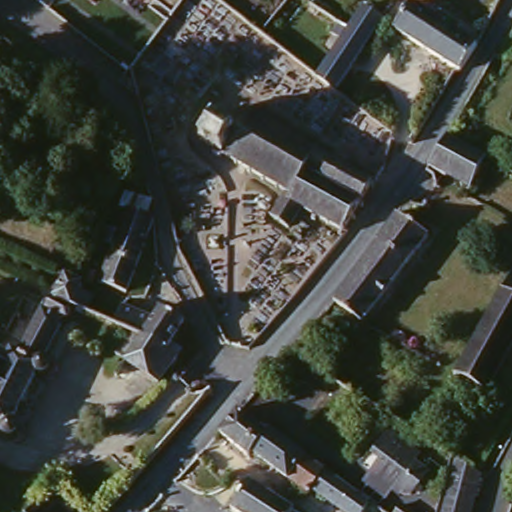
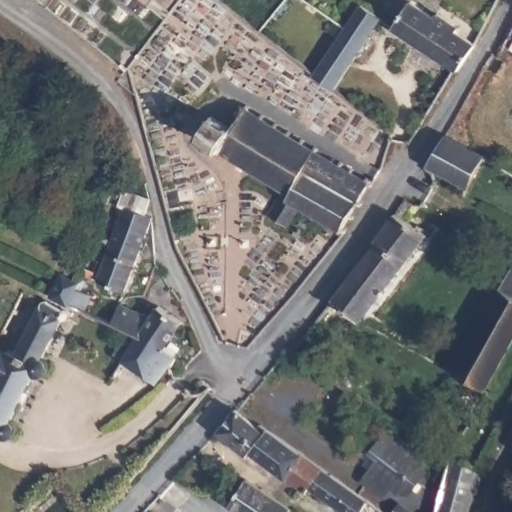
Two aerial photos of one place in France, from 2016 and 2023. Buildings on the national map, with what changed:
unchanged [(301,1),(299,0),(301,0),(301,1)]
unchanged [(337,38),(327,30),(334,20),(345,28),(360,6),(381,19),(333,87),(332,88),(314,74),(315,71),(337,38)]
unchanged [(392,32),(410,6),(434,21),(438,15),(461,29),(457,35),(477,47),(458,73),(392,32)]
unchanged [(341,229),(339,232),(336,230),(337,227),(315,214),(313,217),(310,215),(312,212),(297,203),(286,221),(267,210),(280,186),(221,151),(217,156),(209,150),(212,146),(198,138),(211,115),(228,126),(230,123),(233,124),(239,114),(236,112),(240,105),(244,107),(247,103),(250,105),(248,109),(258,115),(261,112),(265,113),(262,117),(272,123),(274,120),(277,121),(275,125),(285,130),(287,127),(291,130),(289,133),(297,138),(299,134),(302,136),(300,140),(307,144),(311,141),(313,143),(311,147),(322,153),(323,149),(327,151),(325,155),(331,158),(333,154),(336,156),(333,160),(337,162),(341,159),(343,161),(341,164),(348,168),(351,165),(354,168),(352,171),(364,178),(367,174),(372,179),(371,181),(373,183),(371,188),(367,186),(360,200),(362,202),(359,206),(357,204),(352,212),(355,214),(352,218),(350,216),(344,225),(347,227),(345,231),(341,229)]
unchanged [(483,164),(467,194),(428,174),(446,143),(483,164)]
unchanged [(123,289),(96,277),(125,206),(118,203),(125,188),(152,199),(152,202),(145,214),(152,217),(147,230),(123,289)]
unchanged [(426,231),(358,317),(332,298),(382,242),(378,239),(395,210),(426,231)]
unchanged [(97,274),(92,285),(79,279),(83,269),(97,274)]
unchanged [(65,277),(77,282),(82,285),(78,292),(94,300),(87,314),(85,313),(82,320),(65,312),(41,364),(44,364),(48,366),(49,370),(47,374),(43,377),(39,376),(37,374),(12,428),(15,431),(16,434),(15,439),(12,440),(7,439),(3,435),(4,431),(6,428),(0,425),(0,352),(11,357),(13,352),(20,355),(45,302),(51,305),(65,277)]
unchanged [(450,381),(506,278),(512,282),(512,343),(481,399),(450,381)]
unchanged [(115,327),(124,307),(154,321),(162,309),(185,325),(167,351),(132,336),(115,327)]
unchanged [(160,386),(117,357),(132,336),(167,351),(177,360),(160,386)]
unchanged [(348,512),(312,484),(309,488),(252,450),(247,457),(218,428),(237,405),(261,424),(262,421),(312,458),(369,499),(362,512),(348,512)]
unchanged [(382,456),(369,447),(385,427),(413,449),(407,458),(421,469),(405,490),(396,490),(387,484),(378,495),(362,482),(371,471),(382,456)]
unchanged [(480,475),(469,512),(438,512),(454,457),(480,475)]
unchanged [(235,512),(230,508),(235,499),(247,481),(294,511),(293,512),(235,512)]
unchanged [(405,512),(397,512),(400,508),(405,512)]

